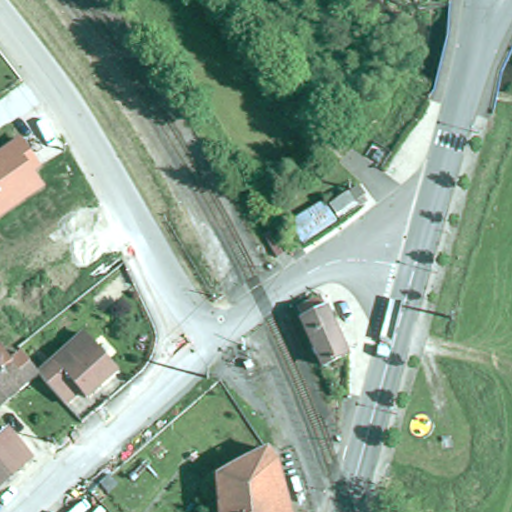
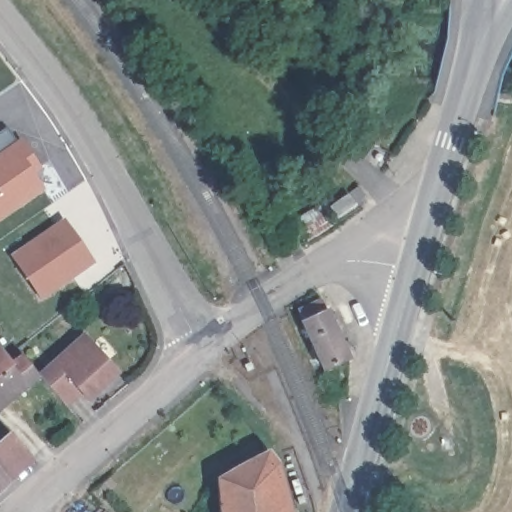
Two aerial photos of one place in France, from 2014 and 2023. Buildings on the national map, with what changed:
unchanged [(35,174),(45,188),(0,218),(0,151),(20,139),(42,168),(35,174)]
unchanged [(365,194),(357,199),(351,190),(358,185),(365,194)]
unchanged [(287,223),(347,187),(355,201),(335,213),(340,219),(299,248),(287,223)]
new [(65,217),(95,261),(40,298),(9,254),(65,217)]
unchanged [(290,250),(278,257),(265,234),(276,228),(290,250)]
unchanged [(305,324),(300,314),(320,304),(325,315),(326,314),(329,319),(337,315),(341,324),(333,329),(348,361),(325,372),(303,324),(305,324)]
unchanged [(0,336),(0,324),(5,332),(0,336)]
unchanged [(116,371),(87,398),(80,390),(65,403),(49,385),(40,374),(85,334),(116,371)]
unchanged [(40,374),(0,406),(0,342),(14,361),(23,353),(25,354),(40,374)]
unchanged [(31,458),(10,478),(0,466),(0,438),(10,429),(31,458)]
unchanged [(216,476),(269,449),(277,460),(291,512),(219,512),(216,476)]
unchanged [(0,486),(0,466),(10,478),(0,486)]

